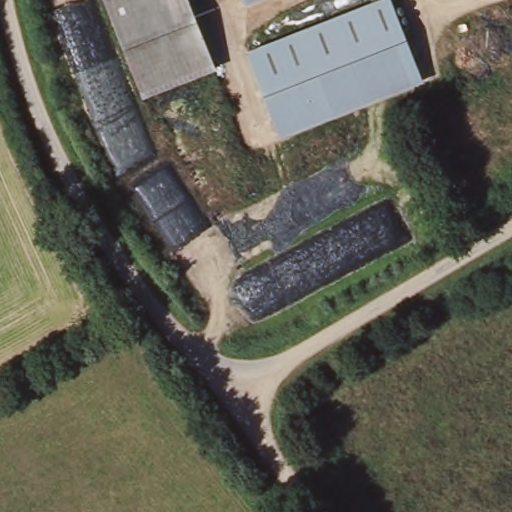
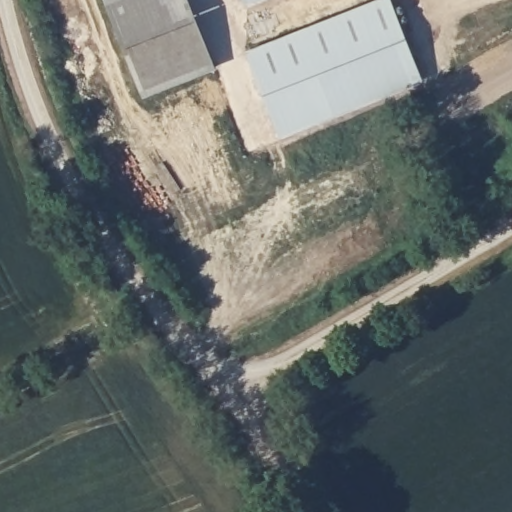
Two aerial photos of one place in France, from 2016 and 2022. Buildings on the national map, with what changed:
unchanged [(188,0),(214,68),(142,98),(104,0),(188,0)]
unchanged [(384,0),(414,73),(276,130),(245,57),(382,0),(384,0)]
unchanged [(247,0),(253,0),(248,2),(247,0)]

